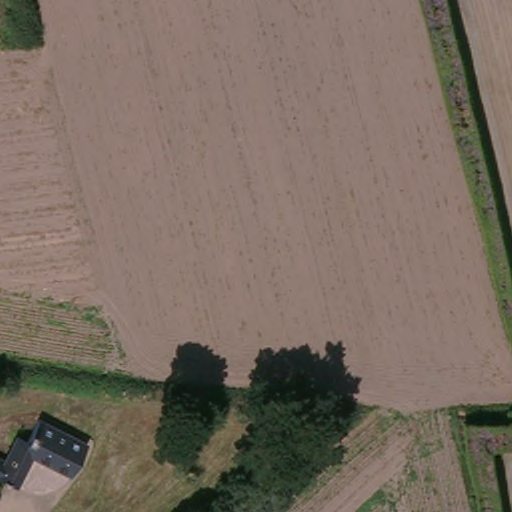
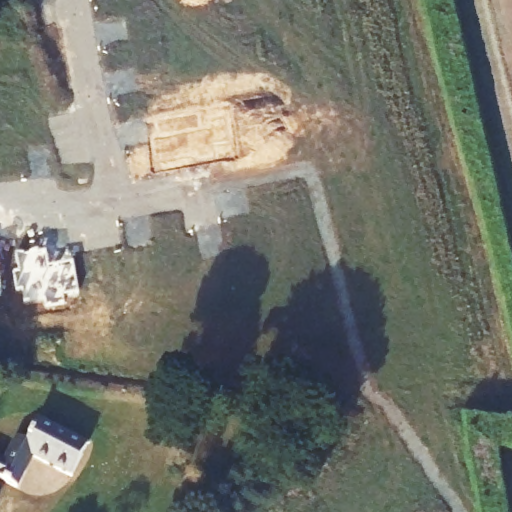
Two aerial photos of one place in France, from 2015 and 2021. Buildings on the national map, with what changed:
new [(19,269),(16,252),(38,249),(38,251),(46,250),(48,265),(73,260),(78,291),(63,293),(64,301),(45,305),(44,297),(24,300),(22,288),(16,288),(13,270),(19,269)]
unchanged [(14,430),(27,435),(39,416),(91,443),(75,467),(38,451),(20,480),(2,470),(0,473),(0,450),(1,451),(14,430)]
unchanged [(0,489),(4,491),(0,498),(0,489)]

